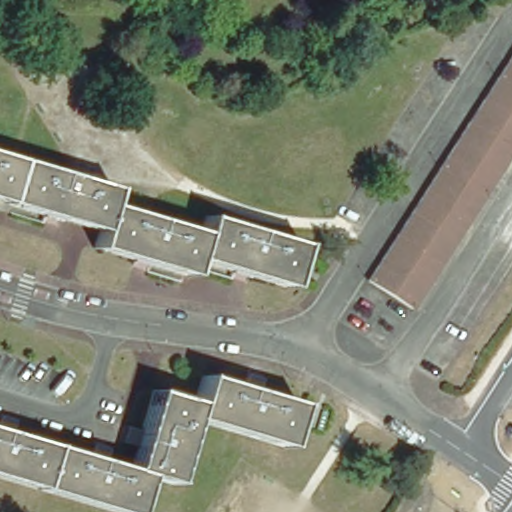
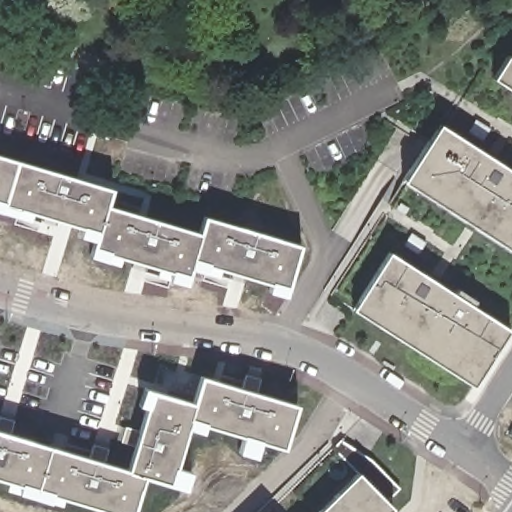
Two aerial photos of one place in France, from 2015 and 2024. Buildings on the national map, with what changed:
demolished [(418,304),(369,272),(512,50),(512,158),(502,172),(418,304)]
new [(506,54),(512,54),(512,90),(492,77),(506,54)]
new [(439,123),(512,170),(512,250),(402,180),(439,123)]
unchanged [(73,179),(61,221),(0,204),(0,158),(73,179)]
unchanged [(61,221),(73,179),(110,191),(106,205),(98,232),(61,221)]
unchanged [(106,205),(200,235),(205,218),(299,246),(285,289),(192,261),(187,278),(93,249),(98,232),(106,205)]
new [(351,307),(387,250),(453,293),(456,287),(475,299),(471,305),(509,329),(472,385),(351,307)]
unchanged [(13,421),(8,435),(88,459),(93,445),(108,449),(103,464),(128,471),(135,446),(121,442),(126,428),(139,432),(152,393),(193,405),(201,377),(241,389),(245,376),(261,380),(257,393),(295,405),(282,447),(188,419),(169,484),(144,475),(132,512),(107,512),(0,479),(0,417),(13,421)]
new [(354,472),(330,447),(337,440),(409,485),(400,499),(387,512),(315,512),(354,472)]

